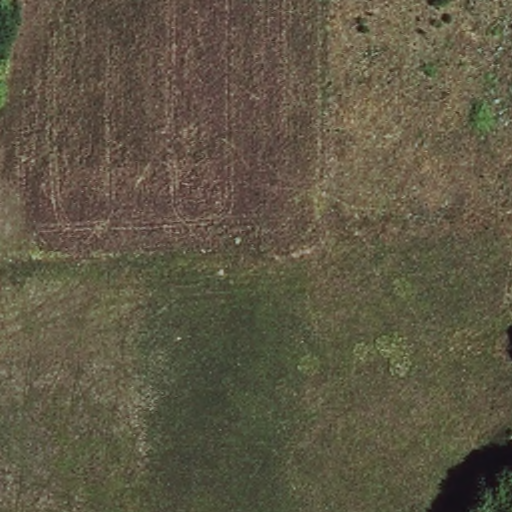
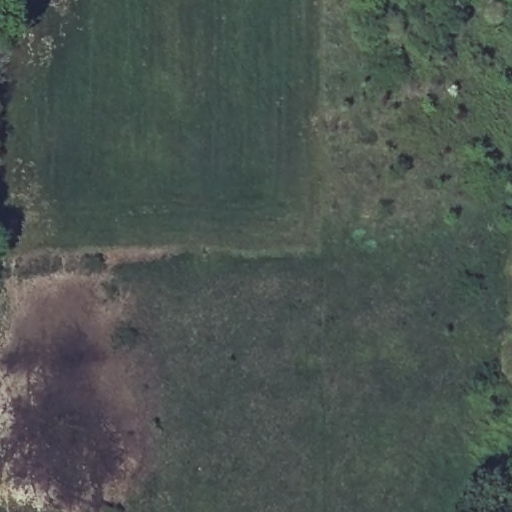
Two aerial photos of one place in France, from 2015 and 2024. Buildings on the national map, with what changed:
[]

